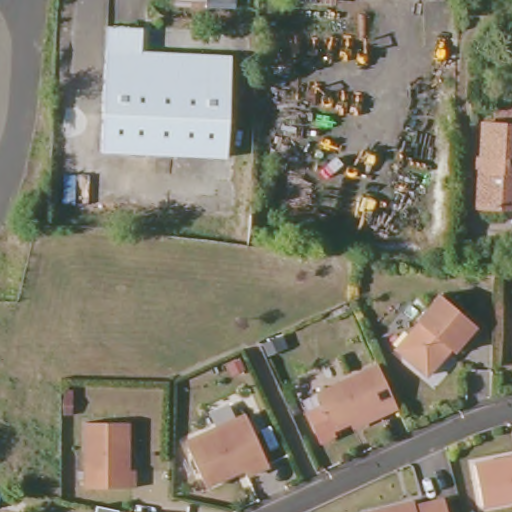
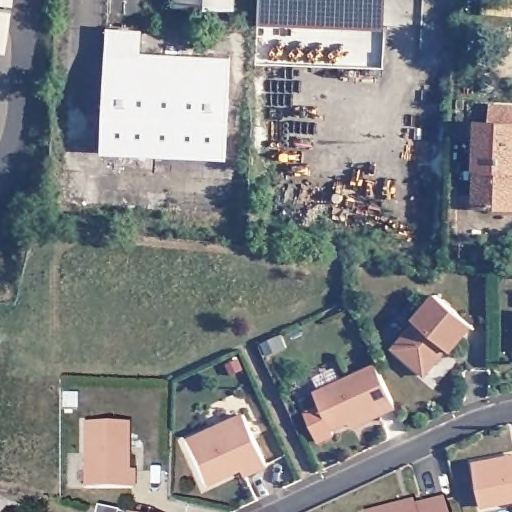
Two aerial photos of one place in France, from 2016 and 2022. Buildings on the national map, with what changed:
unchanged [(189,0),(234,0),(233,3),(189,0)]
new [(281,0),(279,26),(255,26),(257,0),(281,0)]
new [(279,26),(280,0),(383,0),(381,30),(279,26)]
unchanged [(225,158),(100,151),(104,50),(105,26),(130,28),(129,51),(230,57),(225,158)]
unchanged [(475,204),(478,120),(491,120),(492,101),(512,102),(512,205),(498,204),(475,204)]
unchanged [(422,319),(420,318),(442,293),(479,324),(456,350),(450,344),(444,352),(444,357),(430,374),(398,347),(422,319)]
unchanged [(377,364),(386,383),(397,408),(381,416),(377,409),(348,423),(331,431),(315,393),(377,364)]
unchanged [(243,414),(267,466),(245,476),(240,466),(235,468),(236,472),(204,486),(183,442),(243,414)]
unchanged [(126,423),(125,470),(131,471),(131,488),(83,487),(84,422),(126,423)]
unchanged [(512,500),(480,507),(471,464),(512,456),(512,500)]
unchanged [(407,501),(408,506),(444,497),(448,512),(366,512),(366,511),(407,501)]

